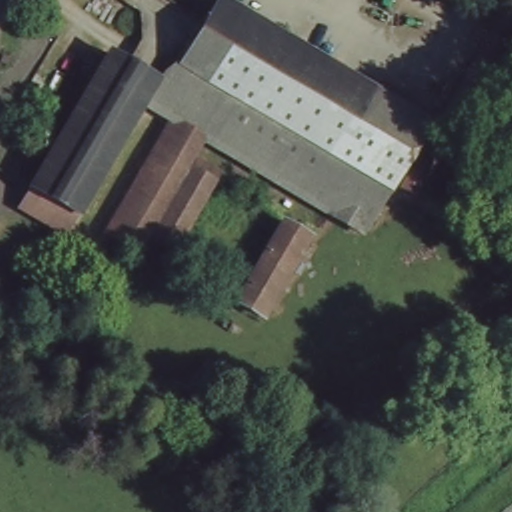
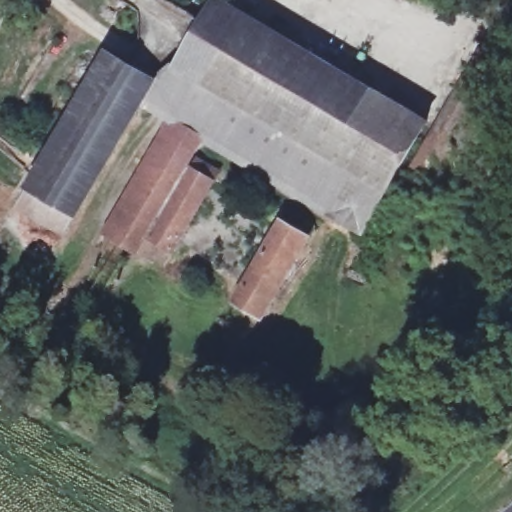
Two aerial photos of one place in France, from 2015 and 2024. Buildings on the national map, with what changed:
unchanged [(215,2),(423,121),(390,180),(383,191),(177,66),(215,2)]
unchanged [(501,39),(493,54),(477,82),(447,136),(442,145),(431,166),(415,194),(403,185),(490,32),(501,39)]
unchanged [(60,232),(14,206),(104,54),(147,81),(137,99),(60,232)]
unchanged [(177,121),(137,99),(147,81),(177,66),(383,191),(361,231),(206,139),(177,121)]
unchanged [(177,121),(206,139),(191,164),(139,252),(112,235),(177,121)]
unchanged [(211,176),(160,264),(139,253),(191,164),(211,176)]
unchanged [(306,235),(257,322),(237,311),(285,223),(306,235)]
unchanged [(112,235),(139,252),(139,253),(102,315),(74,300),(112,235)]
unchanged [(128,357),(119,373),(118,374),(109,370),(104,368),(114,350),(128,357)]

